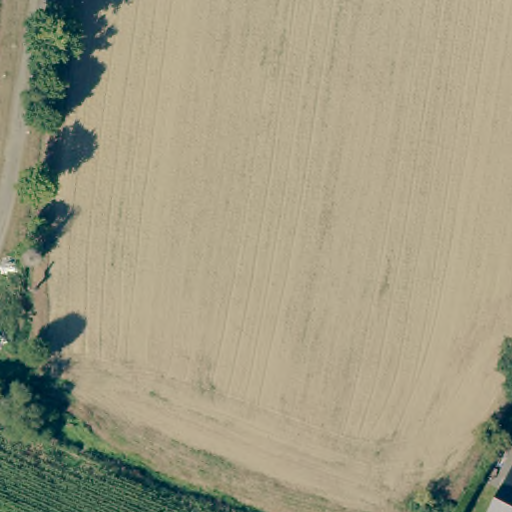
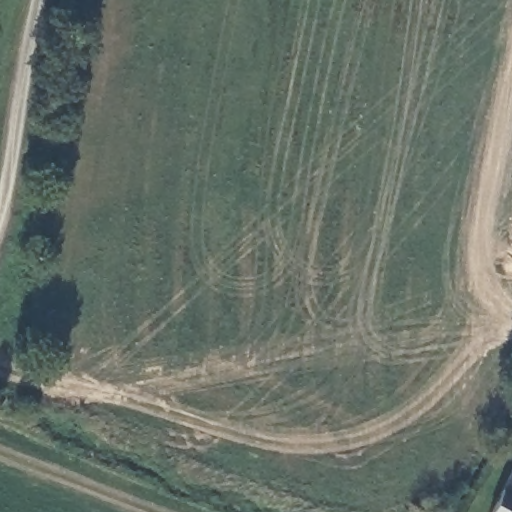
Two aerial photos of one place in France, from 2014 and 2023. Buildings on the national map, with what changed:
unchanged [(512,464),(512,512),(488,512),(512,464)]

